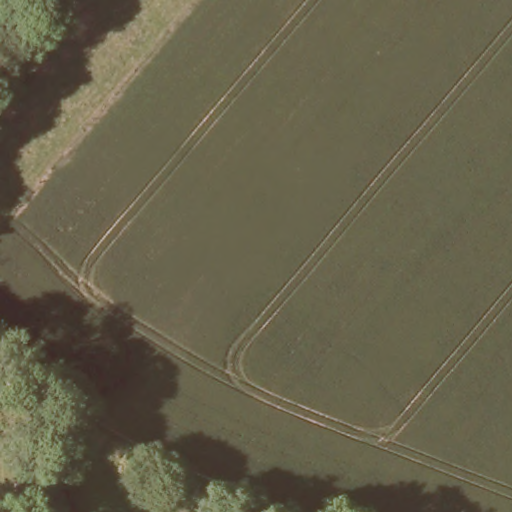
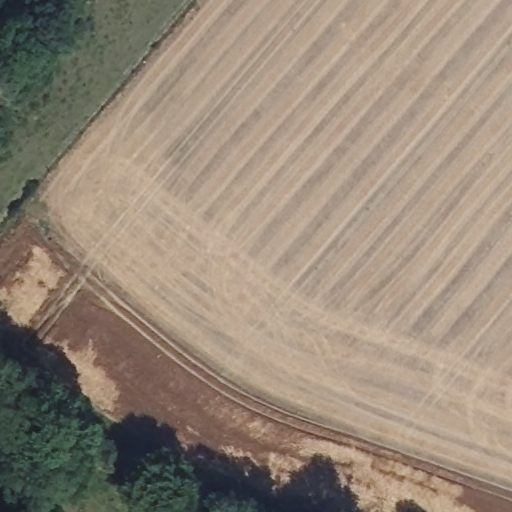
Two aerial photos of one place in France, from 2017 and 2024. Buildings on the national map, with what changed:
unchanged [(5,463),(0,458),(0,392),(38,424),(5,463)]

